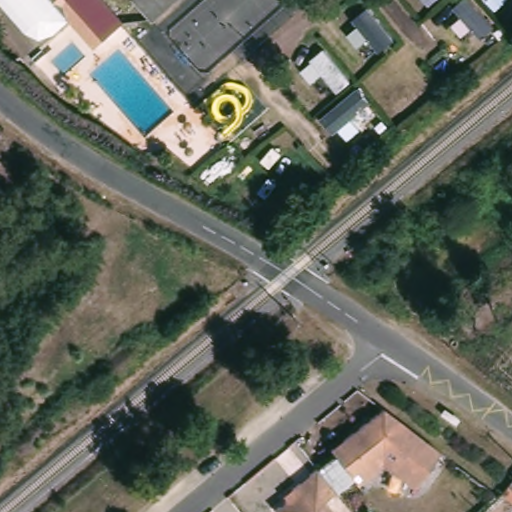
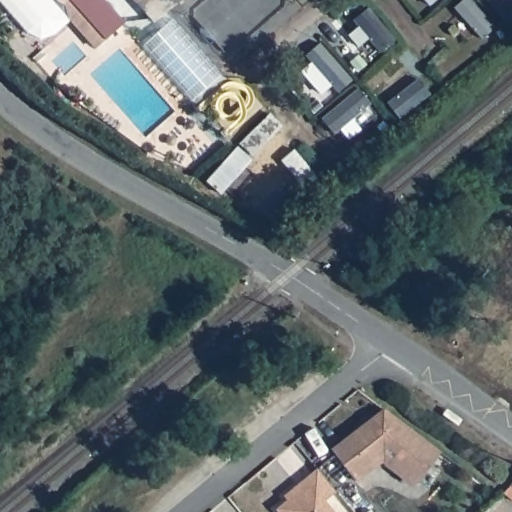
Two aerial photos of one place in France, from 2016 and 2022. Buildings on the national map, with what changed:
unchanged [(105,0),(124,23),(97,49),(55,0),(105,0)]
unchanged [(131,0),(178,0),(152,23),(131,0)]
unchanged [(412,426),(440,447),(416,478),(389,458),(379,460),(358,478),(332,448),(383,405),(412,426)]
unchanged [(273,507),(312,471),(333,496),(324,503),(331,512),(278,512),(273,507)]

